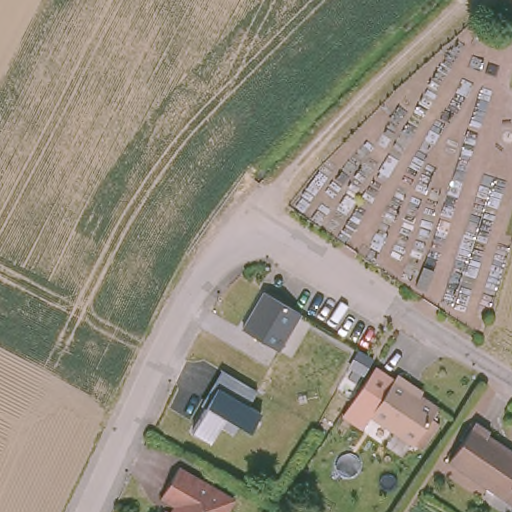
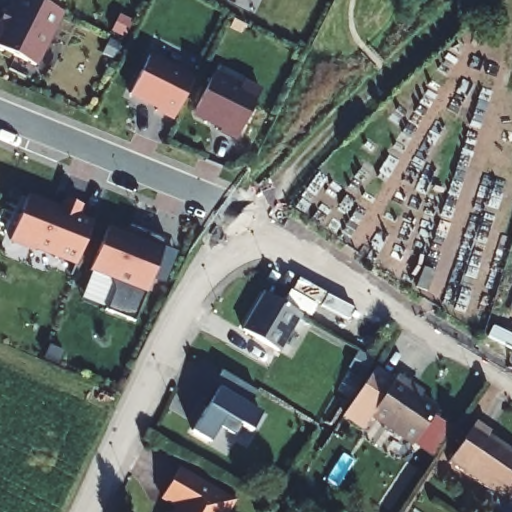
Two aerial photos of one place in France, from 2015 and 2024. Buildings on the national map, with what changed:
new [(43,0),(66,11),(39,65),(0,46),(0,15),(8,0),(43,0)]
new [(155,111),(156,108),(129,94),(148,56),(193,78),(173,119),(155,111)]
new [(241,84),(243,79),(262,89),(238,139),(191,116),(215,71),(241,84)]
new [(92,222),(76,261),(35,245),(34,248),(9,238),(27,194),(50,204),(49,208),(58,212),(64,198),(81,205),(76,216),(92,222)]
new [(144,240),(148,231),(167,240),(164,246),(178,251),(165,284),(151,278),(134,318),(105,308),(113,287),(110,286),(113,279),(89,270),(108,225),(144,240)]
unchanged [(259,292),(294,312),(273,349),(238,329),(259,292)]
unchanged [(417,433),(373,405),(364,417),(346,405),(376,357),(395,369),(399,364),(414,374),(424,380),(422,385),(441,396),(417,433)]
unchanged [(194,400),(214,366),(250,386),(241,401),(254,408),(244,426),(233,420),(228,429),(213,421),(204,437),(186,426),(199,402),(194,400)]
unchanged [(446,458),(472,416),(488,426),(486,430),(512,447),(512,501),(446,458)]
unchanged [(164,508),(171,511),(176,501),(161,492),(176,466),(229,496),(220,512),(162,512),(164,508)]

